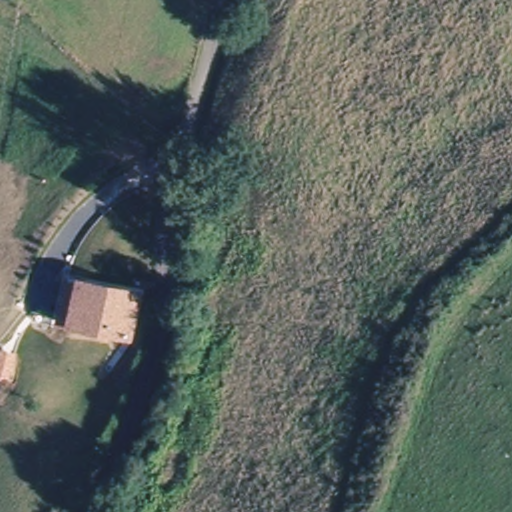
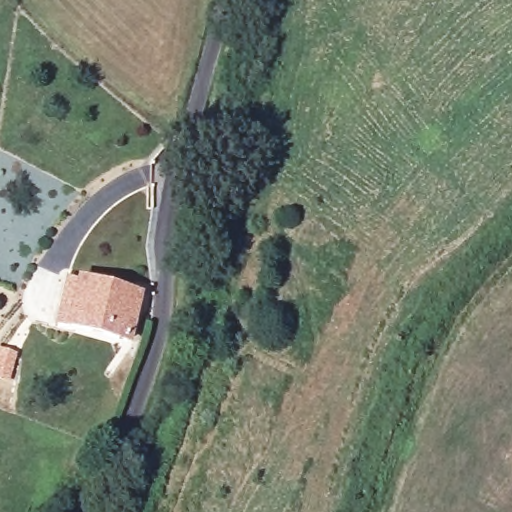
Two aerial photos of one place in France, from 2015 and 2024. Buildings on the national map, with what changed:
unchanged [(60,325),(71,278),(82,280),(82,279),(104,285),(119,288),(140,293),(129,340),(72,328),(60,325)]

